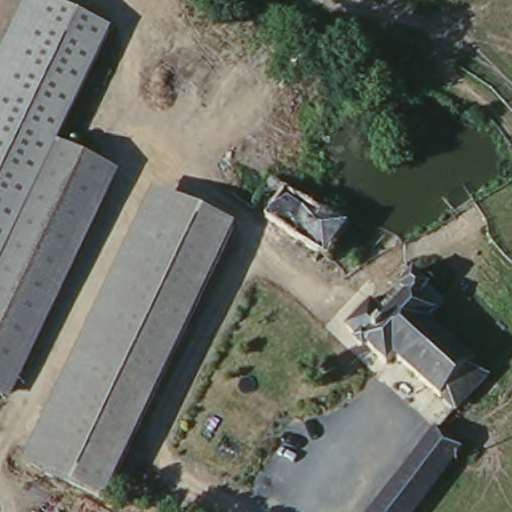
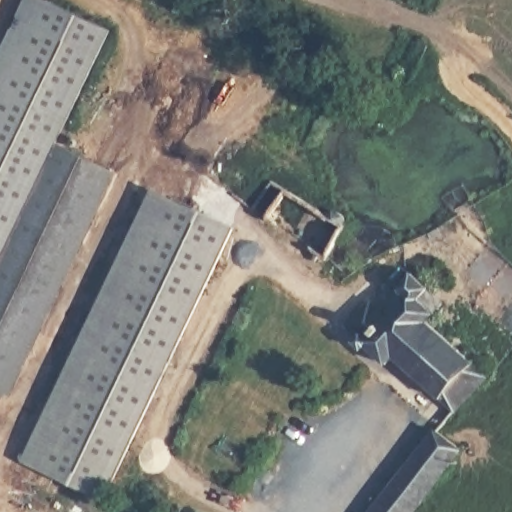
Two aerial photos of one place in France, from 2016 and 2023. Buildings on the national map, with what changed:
unchanged [(28,0),(51,0),(115,30),(63,140),(0,269),(0,57),(28,0)]
unchanged [(114,165),(1,395),(0,395),(0,269),(63,140),(114,165)]
unchanged [(264,219),(269,209),(258,201),(270,179),(286,186),(349,228),(328,261),(264,219)]
unchanged [(238,226),(108,502),(25,460),(156,187),(238,226)]
unchanged [(446,297),(431,315),(491,378),(473,400),(460,415),(460,414),(400,359),(394,365),(351,325),(375,298),(391,312),(399,303),(389,294),(398,282),(400,282),(416,267),(426,278),(446,297)]
unchanged [(433,429),(459,448),(412,512),(372,512),(433,429)]

